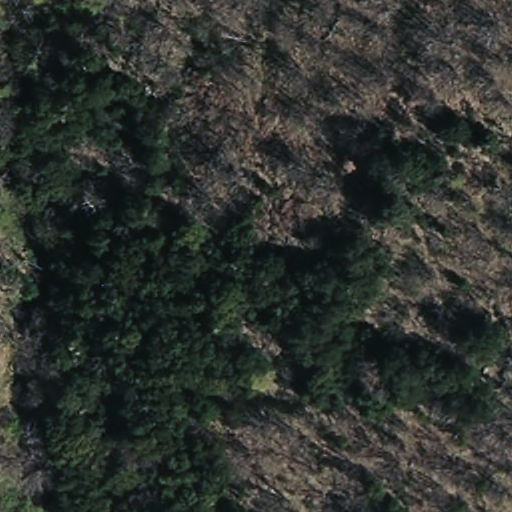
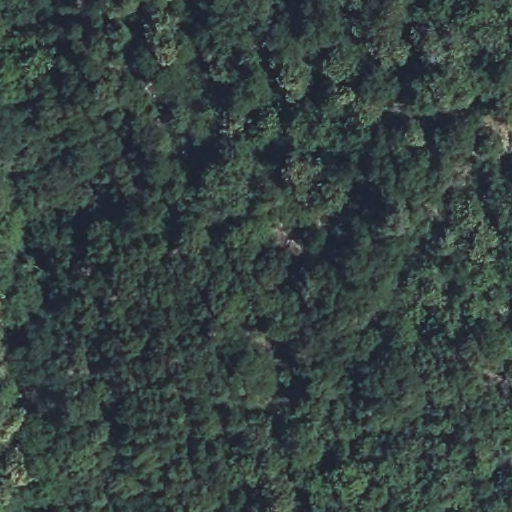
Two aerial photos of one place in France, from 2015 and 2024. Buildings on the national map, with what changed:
[]

